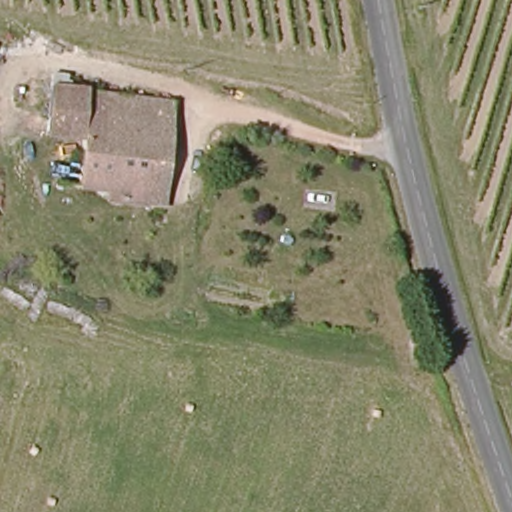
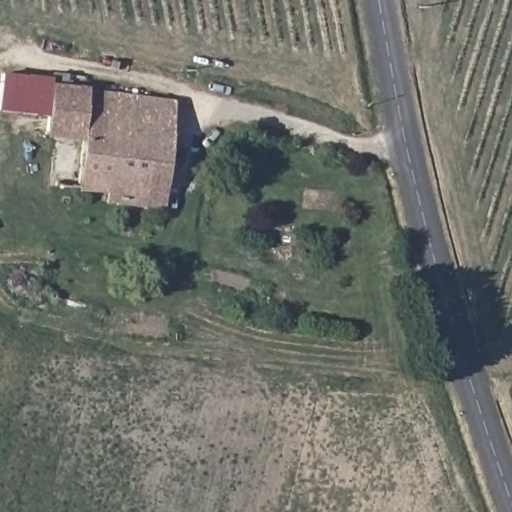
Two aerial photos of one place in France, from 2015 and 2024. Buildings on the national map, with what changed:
new [(50,76),(45,115),(0,111),(0,79),(0,72),(50,76)]
unchanged [(144,195),(109,190),(110,180),(96,179),(55,174),(59,139),(43,137),(45,115),(50,76),(174,92),(166,157),(161,197),(144,195)]

